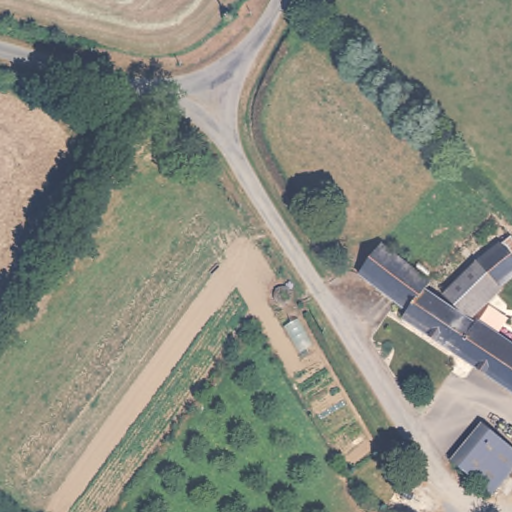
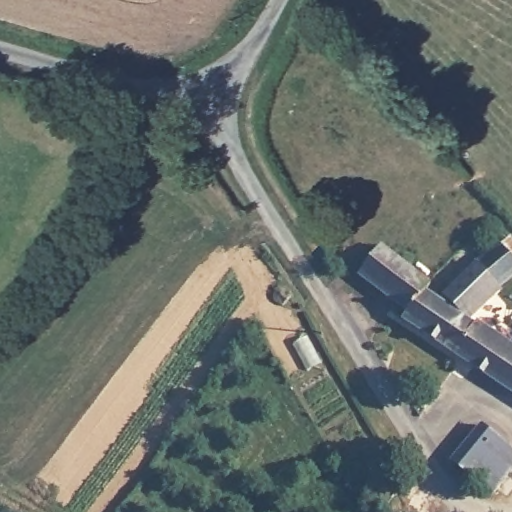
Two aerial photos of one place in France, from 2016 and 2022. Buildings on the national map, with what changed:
unchanged [(504,294),(470,325),(512,353),(512,397),(403,320),(407,312),(359,280),(381,247),(431,282),(427,292),(460,317),(446,296),(473,267),(499,245),(511,235),(512,237),(512,277),(498,287),(504,294)]
unchanged [(285,306),(271,297),(278,286),(292,295),(285,306)]
unchanged [(452,462),(478,425),(492,436),(512,450),(512,463),(490,497),(466,475),(452,462)]

